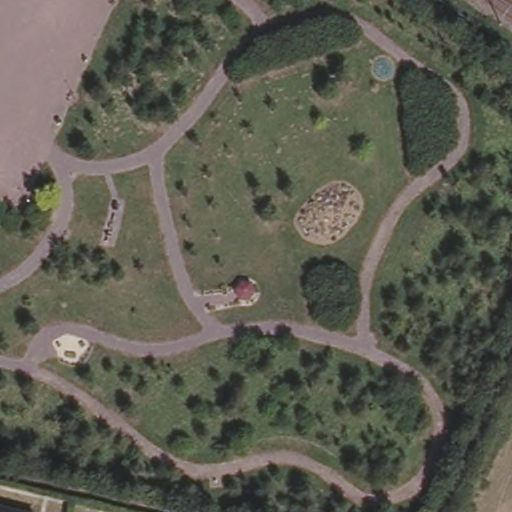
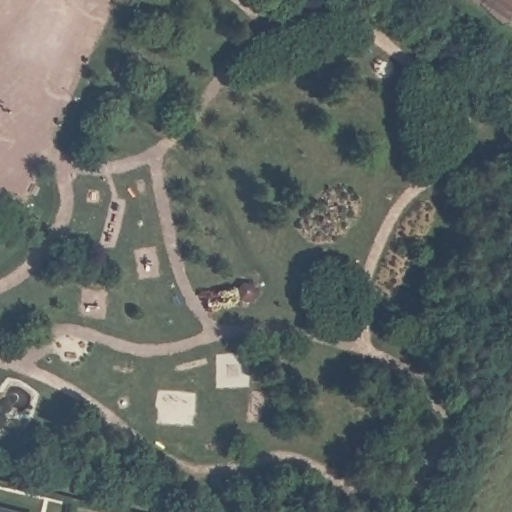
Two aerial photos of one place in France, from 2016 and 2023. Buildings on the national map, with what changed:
unchanged [(4,512),(0,512),(0,511),(4,512)]

